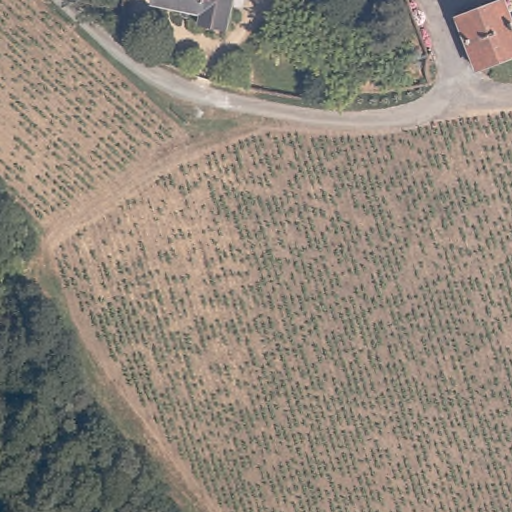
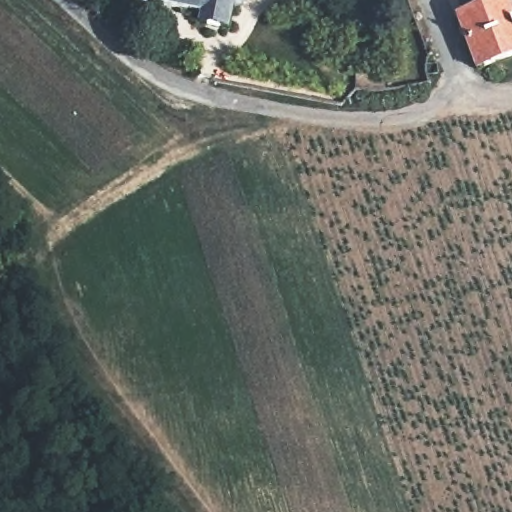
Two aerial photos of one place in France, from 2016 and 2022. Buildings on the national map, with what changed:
unchanged [(205,20),(204,12),(157,7),(158,0),(235,0),(233,21),(205,20)]
unchanged [(512,19),(512,52),(473,66),(455,21),(504,1),(512,19)]

